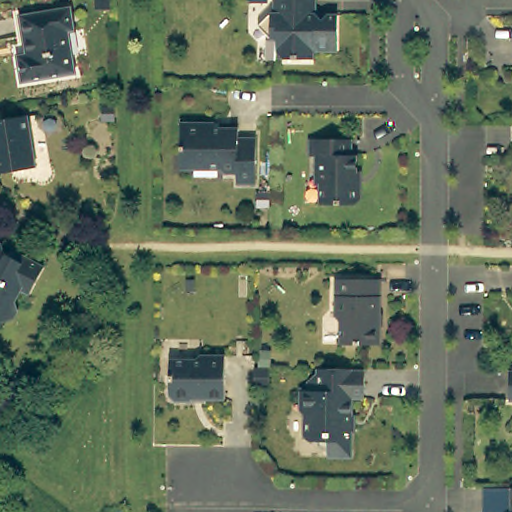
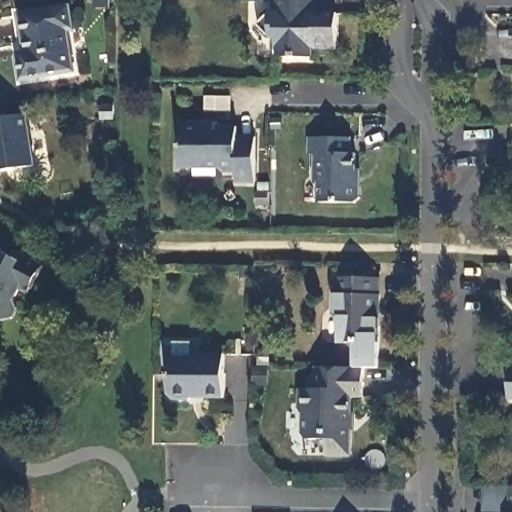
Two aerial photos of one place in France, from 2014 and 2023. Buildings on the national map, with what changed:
unchanged [(327,20),(330,15),(336,12),(342,12),(342,49),(320,49),(320,56),(288,56),(283,51),(281,44),(282,36),(277,36),(266,25),(266,20),(278,10),(278,0),(320,0),(320,12),(327,20)]
unchanged [(70,10),(72,34),(70,34),(75,75),(22,85),(18,57),(25,56),(20,16),(70,10)]
unchanged [(34,166),(0,172),(0,119),(26,115),(34,166)]
unchanged [(218,129),(217,134),(241,134),(241,142),(260,142),(259,189),(239,189),(239,179),(226,179),(222,175),(183,174),(183,128),(218,129)]
unchanged [(354,155),(360,155),(360,184),(363,189),(365,195),(365,199),(355,204),(321,204),(321,180),(317,175),(318,155),(311,155),(311,140),(354,140),(354,155)]
unchanged [(9,246),(35,262),(20,290),(14,285),(8,295),(10,301),(9,308),(5,313),(0,315),(0,252),(4,254),(9,246)]
unchanged [(338,317),(338,280),(381,280),(382,343),(343,344),(342,320),(338,317)]
unchanged [(200,364),(200,359),(227,360),(227,402),(209,402),(209,400),(198,400),(194,405),(178,405),(172,400),(172,363),(200,364)]
unchanged [(312,391),(313,370),(321,370),(360,370),(363,370),(363,400),(351,399),(351,416),(347,418),(347,430),(351,430),(350,457),(325,457),(325,442),(308,442),(302,436),(303,415),(297,411),(297,391),(304,391),(312,391)]
unchanged [(482,488),(512,488),(512,512),(483,512),(482,488)]

